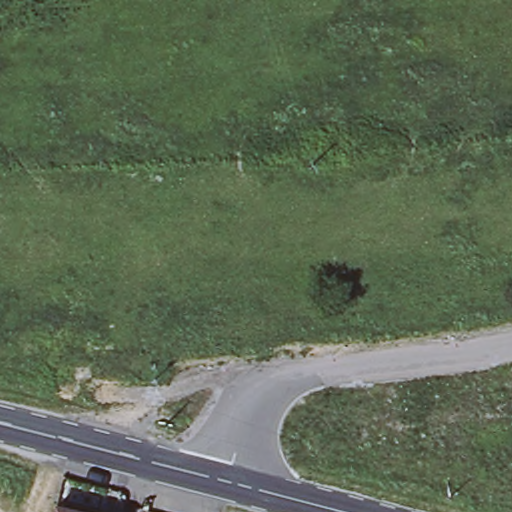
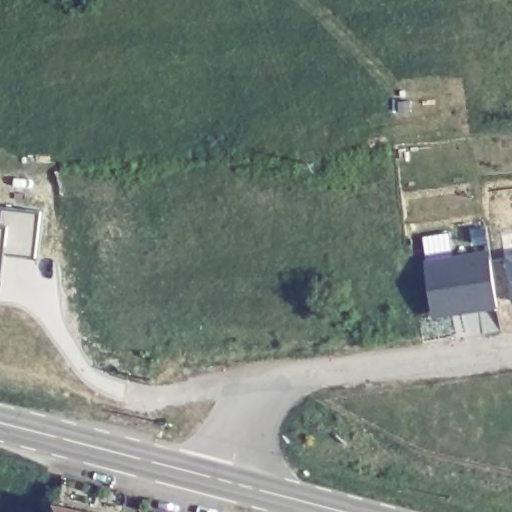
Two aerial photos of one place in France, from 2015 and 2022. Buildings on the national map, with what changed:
new [(34,258),(0,253),(0,207),(40,212),(34,258)]
new [(425,259),(492,249),(500,306),(434,316),(425,259)]
new [(506,259),(512,258),(512,303),(506,259)]
unchanged [(89,512),(52,512),(53,504),(89,512)]

